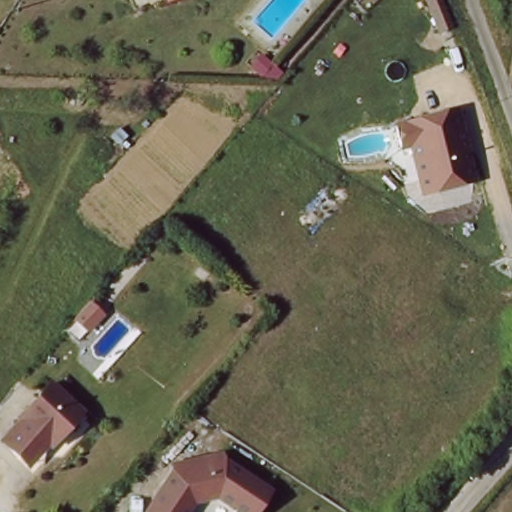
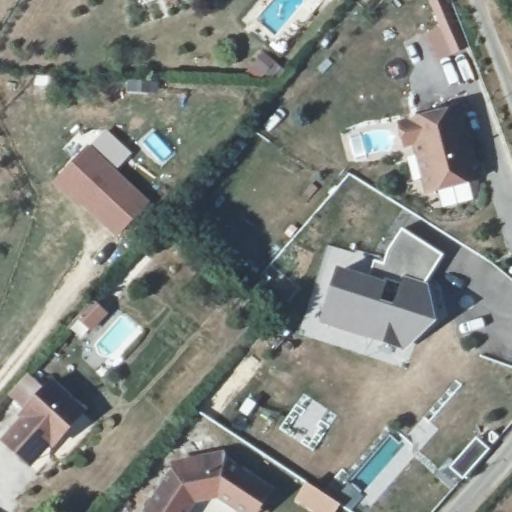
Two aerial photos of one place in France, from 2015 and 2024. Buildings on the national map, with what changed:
unchanged [(168,0),(172,0),(169,1),(168,0)]
new [(440,26),(429,0),(448,0),(468,48),(437,61),(425,33),(440,26)]
unchanged [(463,106),(482,182),(428,195),(414,147),(405,150),(397,121),(463,106)]
new [(79,209),(52,183),(89,144),(151,203),(117,238),(83,206),(79,209)]
new [(320,322),(337,266),(370,276),(374,261),(385,264),(388,252),(403,229),(444,255),(427,284),(437,323),(405,350),(320,322)]
unchanged [(25,456),(9,443),(29,419),(26,417),(55,384),(83,408),(68,425),(72,428),(58,444),(55,442),(35,465),(25,456)]
unchanged [(250,512),(247,512),(237,505),(215,492),(186,498),(187,503),(181,512),(151,512),(145,508),(171,468),(222,457),(254,478),(267,486),(250,512)]

